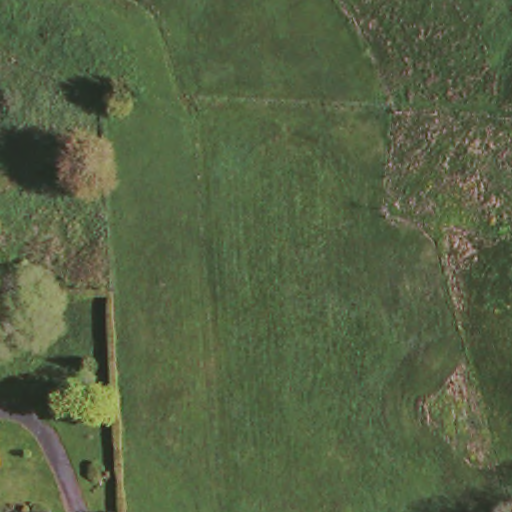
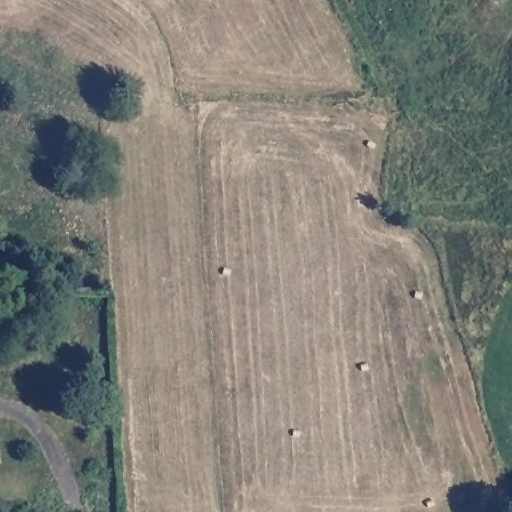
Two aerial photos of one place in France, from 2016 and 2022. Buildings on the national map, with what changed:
[]

